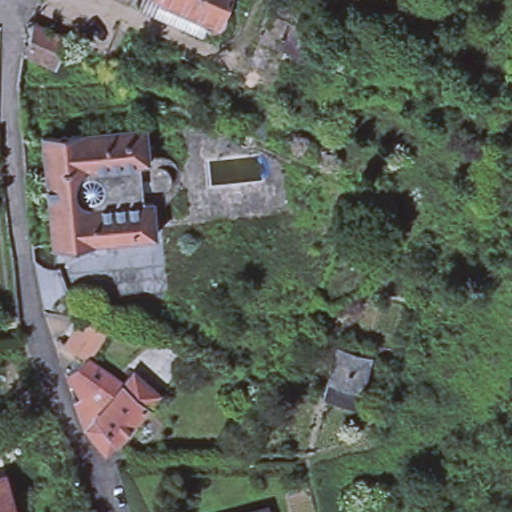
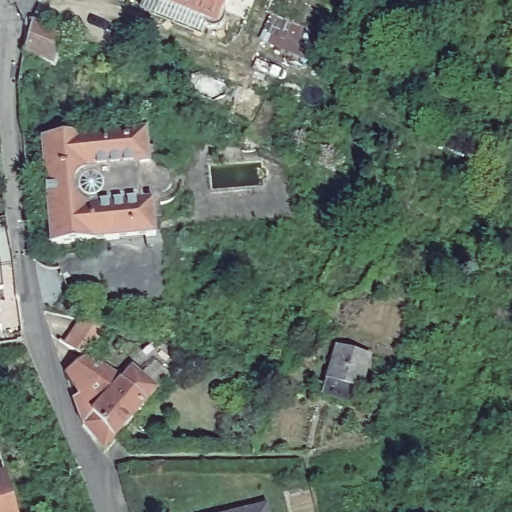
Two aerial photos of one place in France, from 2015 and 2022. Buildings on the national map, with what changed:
unchanged [(145,3),(146,0),(177,0),(205,11),(205,16),(208,20),(212,23),(218,24),(215,31),(145,3)]
unchanged [(229,7),(230,12),(228,16),(225,21),(221,23),(218,24),(212,23),(208,20),(205,16),(205,11),(177,0),(227,0),(226,3),(229,7)]
unchanged [(63,33),(57,68),(25,56),(32,18),(63,33)]
unchanged [(50,243),(42,135),(122,129),(145,126),(148,161),(145,161),(148,201),(151,201),(154,234),(105,238),(93,240),(50,243)]
unchanged [(275,138),(272,146),(247,134),(250,126),(275,138)]
unchanged [(31,246),(64,251),(49,282),(35,278),(31,246)]
unchanged [(71,373),(90,357),(71,345),(86,319),(114,325),(95,360),(127,380),(136,367),(162,391),(119,440),(109,453),(88,426),(79,400),(86,394),(71,373)]
unchanged [(369,357),(356,404),(324,395),(337,348),(369,357)]
unchanged [(10,477),(17,512),(0,512),(0,479),(10,477)]
unchanged [(260,503),(262,512),(224,512),(260,503)]

